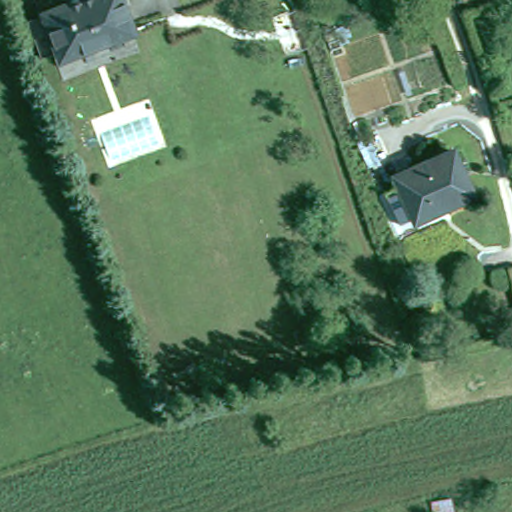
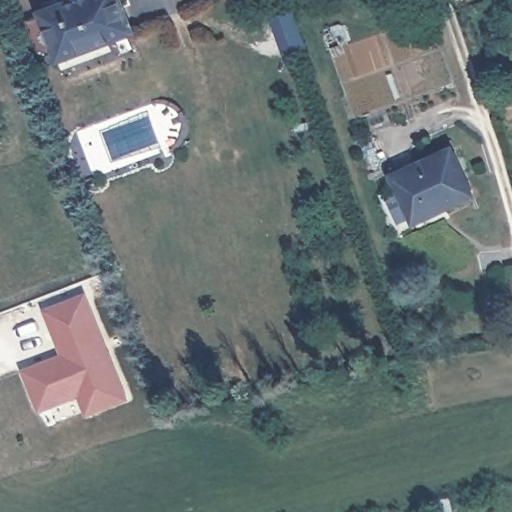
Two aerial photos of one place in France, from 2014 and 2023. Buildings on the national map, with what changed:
unchanged [(111,35),(117,50),(67,69),(62,52),(60,54),(42,7),(61,0),(124,0),(134,27),(111,35)]
unchanged [(433,208),(435,213),(415,223),(394,175),(452,148),(471,189),(433,208)]
new [(48,361),(50,365),(65,359),(46,310),(85,294),(102,337),(99,339),(104,352),(107,350),(125,397),(88,412),(80,392),(64,399),(62,395),(37,405),(24,371),(48,361)]

